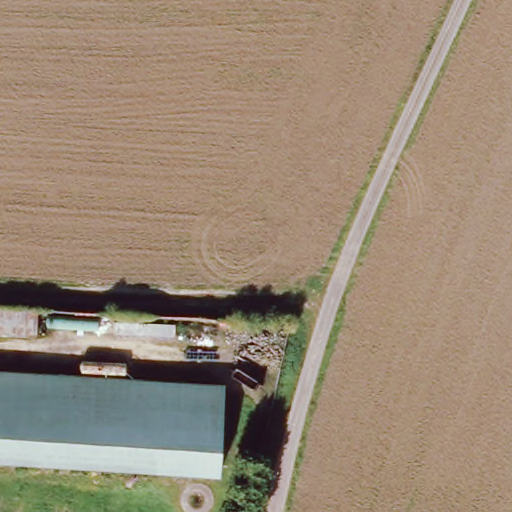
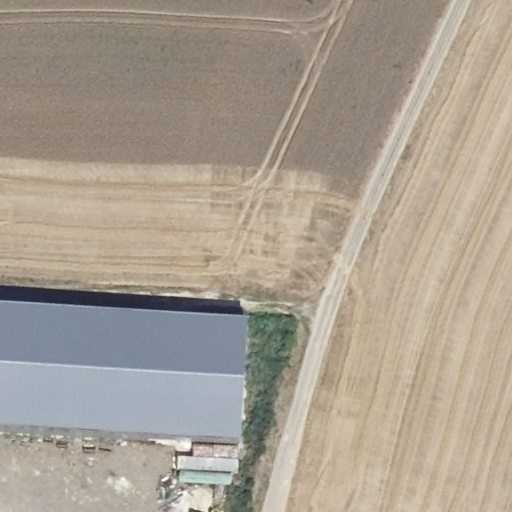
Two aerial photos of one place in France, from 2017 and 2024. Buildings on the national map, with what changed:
new [(0,429),(0,306),(247,321),(240,444),(0,429)]
demolished [(37,342),(0,340),(0,307),(39,308),(37,342)]
demolished [(0,463),(0,375),(225,387),(224,477),(0,463)]

